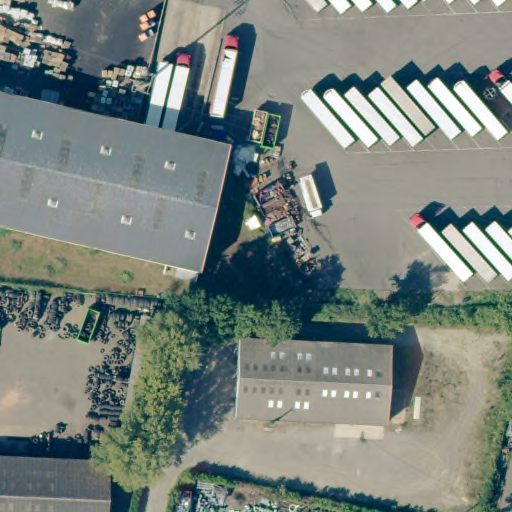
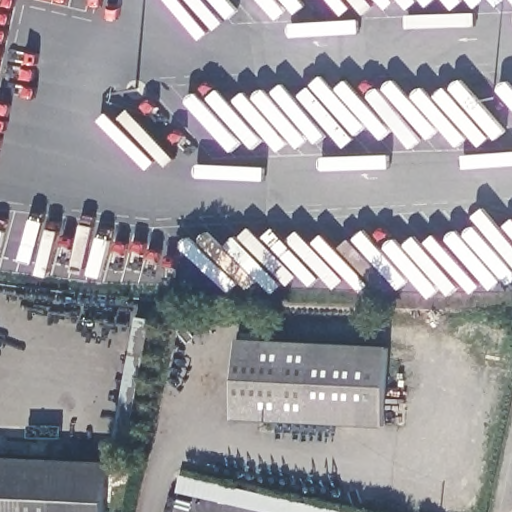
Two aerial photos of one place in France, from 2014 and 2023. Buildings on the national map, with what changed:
demolished [(0,221),(0,92),(220,141),(195,263),(162,256),(0,221)]
unchanged [(193,272),(160,265),(162,256),(195,263),(193,272)]
unchanged [(389,345),(385,419),(234,412),(239,335),(389,345)]
unchanged [(0,448),(104,452),(102,512),(0,512),(0,448)]

